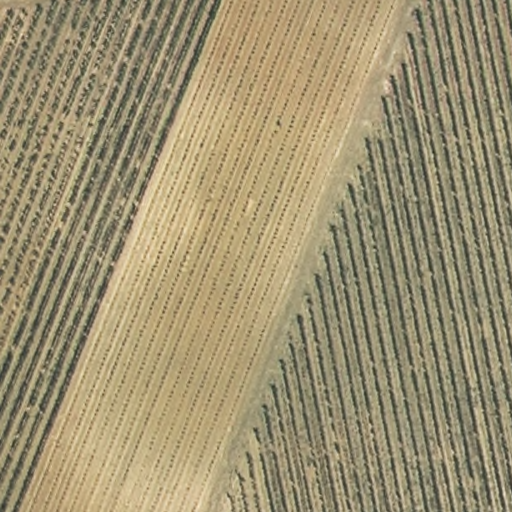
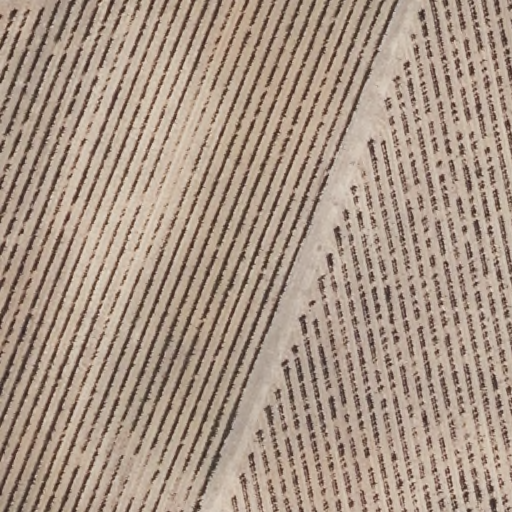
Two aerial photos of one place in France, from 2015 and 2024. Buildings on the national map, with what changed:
[]

